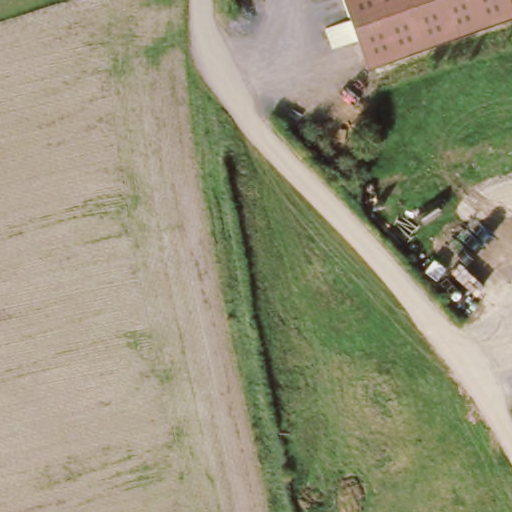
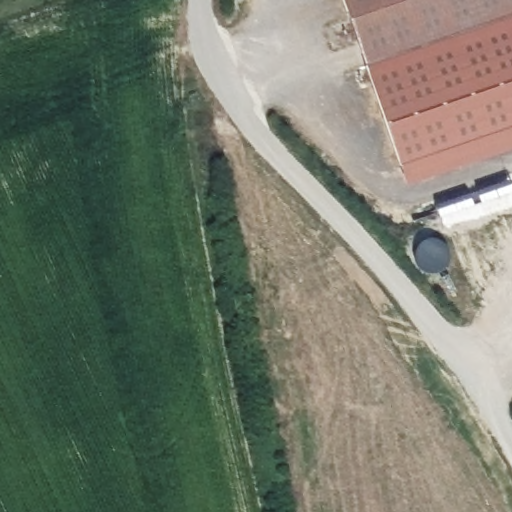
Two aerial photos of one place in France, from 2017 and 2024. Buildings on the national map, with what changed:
demolished [(512,0),(512,13),(364,65),(342,0),(512,0)]
new [(407,182),(356,41),(349,20),(342,0),(512,0),(512,147),(407,182)]

